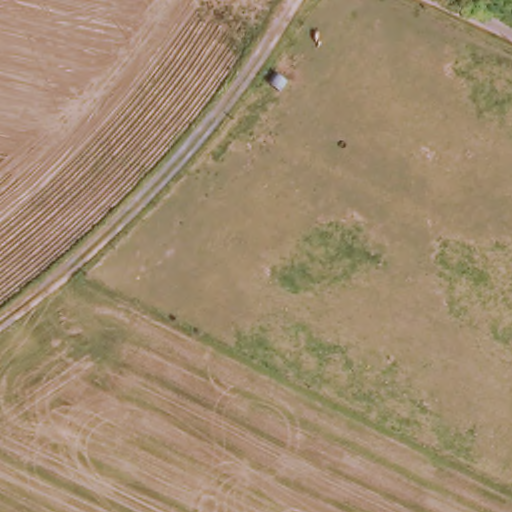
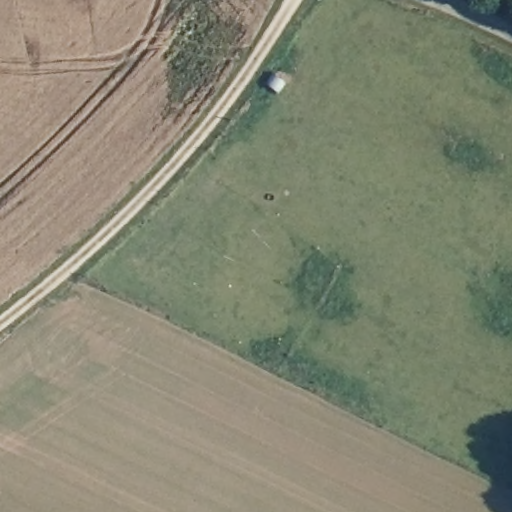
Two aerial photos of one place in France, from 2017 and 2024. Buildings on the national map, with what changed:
[]

